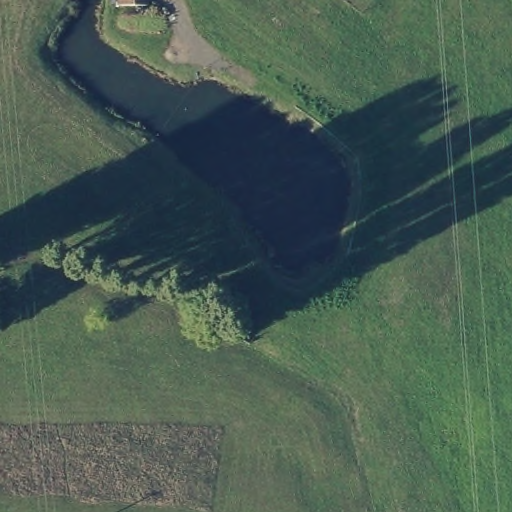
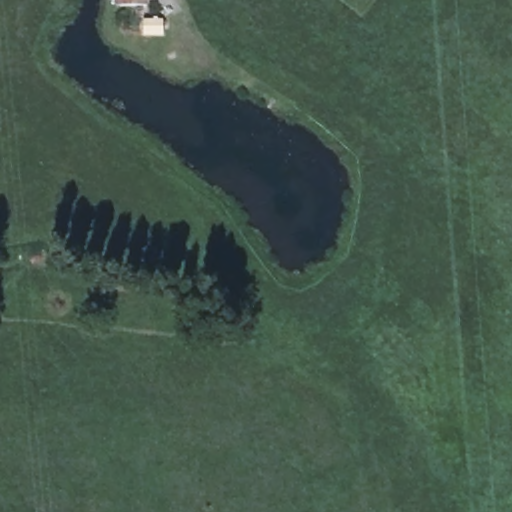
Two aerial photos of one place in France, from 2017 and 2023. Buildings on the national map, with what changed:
unchanged [(141,5),(116,6),(117,0),(141,0),(141,5)]

